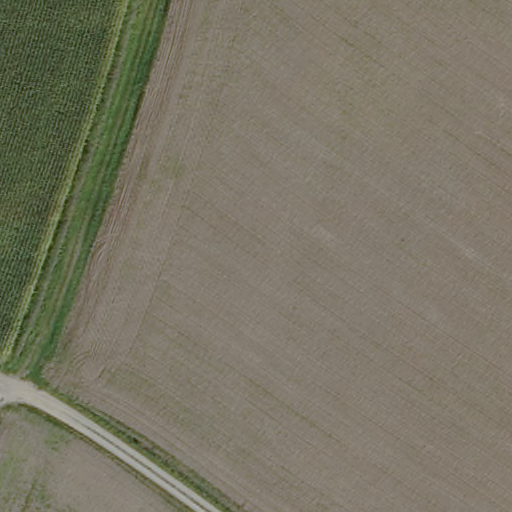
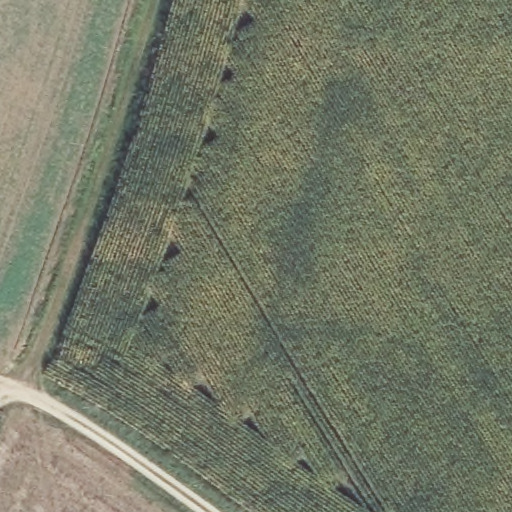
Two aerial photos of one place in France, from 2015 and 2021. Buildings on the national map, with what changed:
[]

